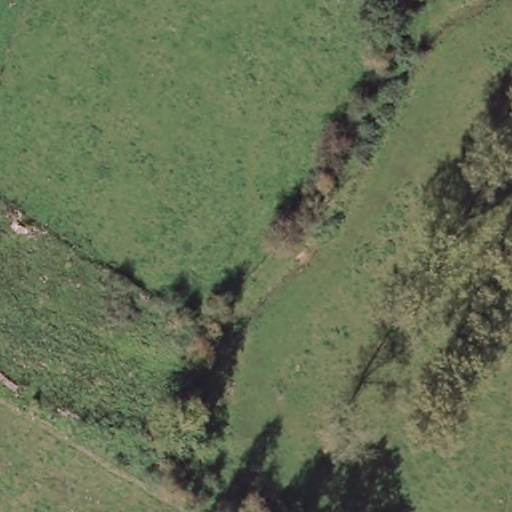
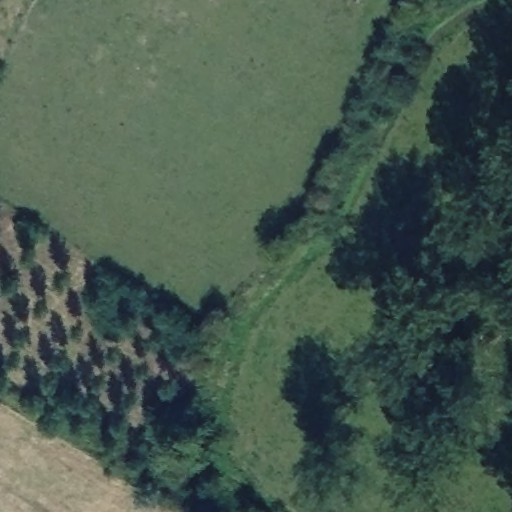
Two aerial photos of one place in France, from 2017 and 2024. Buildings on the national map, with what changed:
[]

